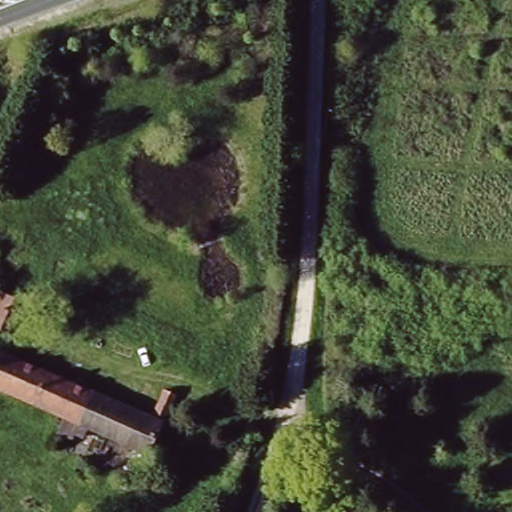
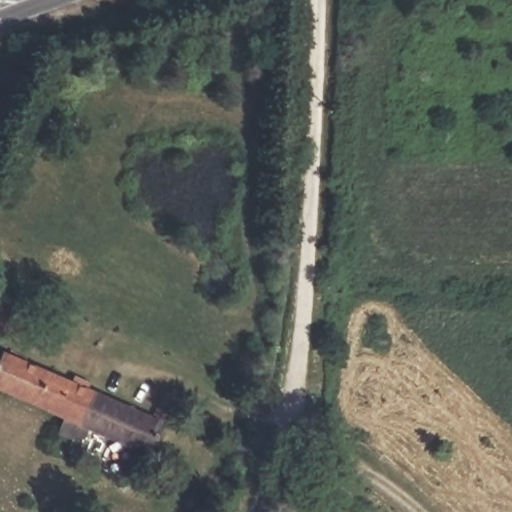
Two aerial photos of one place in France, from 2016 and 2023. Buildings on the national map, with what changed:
unchanged [(32,308),(15,341),(0,332),(0,300),(3,293),(32,308)]
unchanged [(162,391),(175,395),(148,461),(0,400),(0,359),(147,420),(162,391)]

